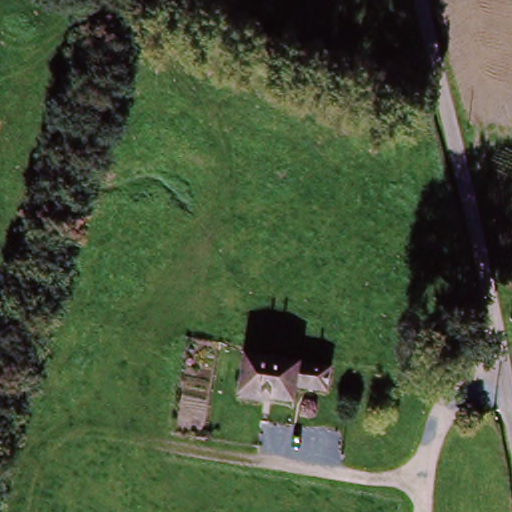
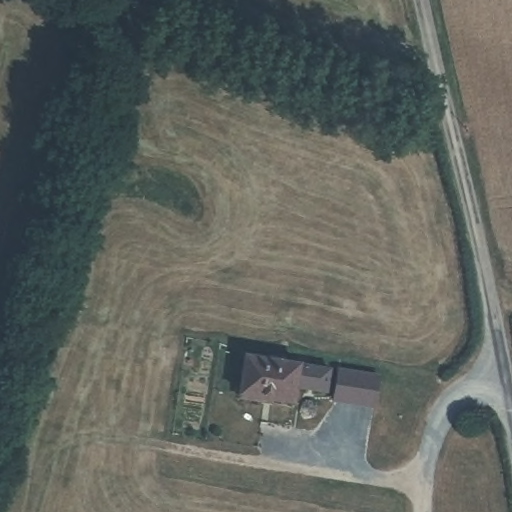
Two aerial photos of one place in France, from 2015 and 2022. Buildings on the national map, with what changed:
unchanged [(326,391),(298,387),(295,403),(275,400),(275,405),(243,400),(249,358),(330,370),(326,391)]
new [(382,374),(377,409),(331,402),(338,365),(382,374)]

